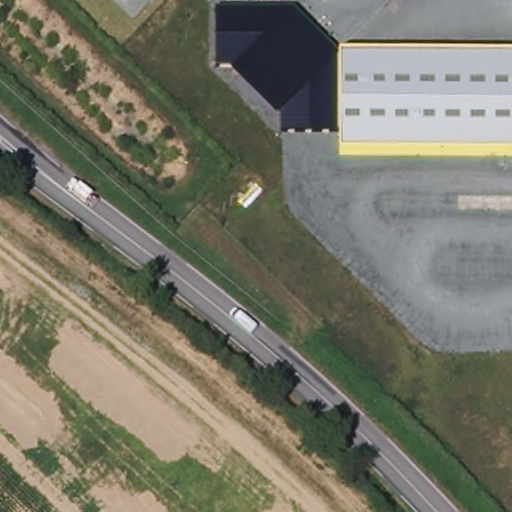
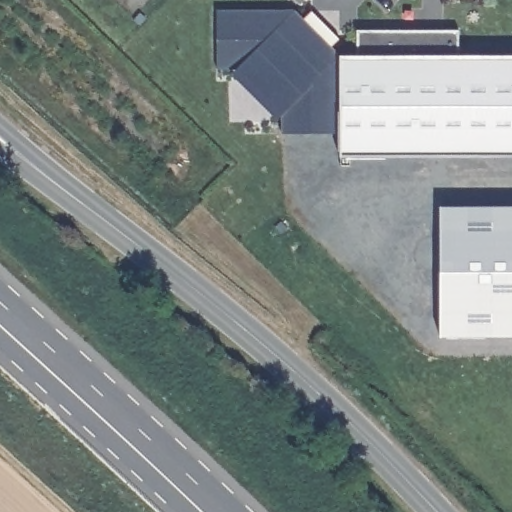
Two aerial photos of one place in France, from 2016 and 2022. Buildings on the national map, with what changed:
unchanged [(229,71),(216,71),(218,11),(292,10),(339,57),(512,57),(512,155),(339,155),(339,135),(279,134),(279,121),(229,71)]
new [(457,57),(357,57),(357,30),(457,31),(457,57)]
new [(439,206),(512,206),(512,335),(440,335),(439,206)]

